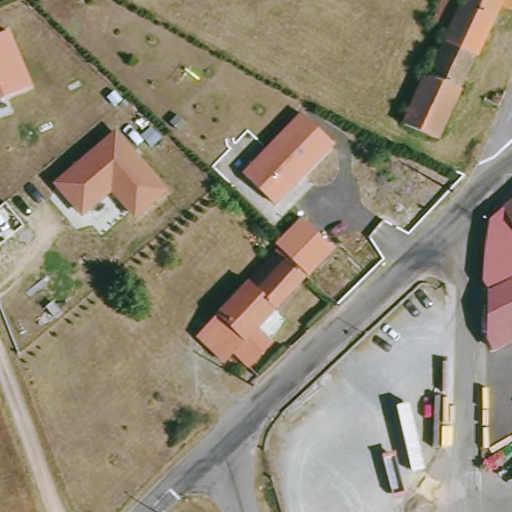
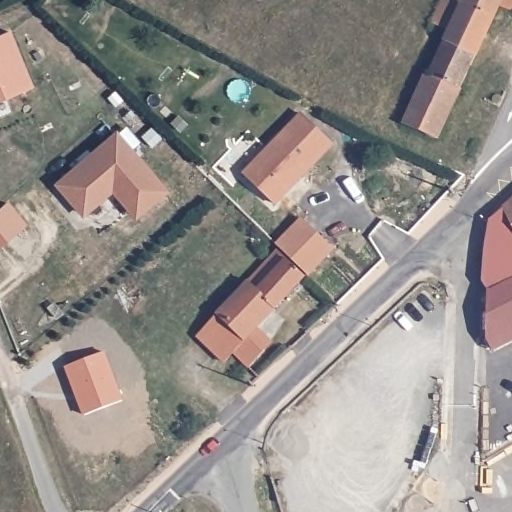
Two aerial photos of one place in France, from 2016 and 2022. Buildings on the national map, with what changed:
unchanged [(495,3),(471,54),(440,37),(441,33),(444,26),(427,19),(435,0),(512,0),(512,7),(495,3)]
unchanged [(10,32),(32,88),(0,102),(0,36),(10,32)]
unchanged [(435,134),(399,118),(423,66),(426,67),(440,37),(471,54),(435,134)]
unchanged [(302,115),(332,144),(271,204),(242,175),(302,115)]
unchanged [(167,191),(138,215),(113,183),(80,212),(55,182),(116,131),(167,191)]
unchanged [(479,219),(512,189),(512,274),(478,294),(479,219)]
new [(6,203),(24,225),(0,244),(0,208),(6,203)]
unchanged [(301,219),(330,249),(304,275),(280,251),(275,246),(301,219)]
unchanged [(247,368),(230,352),(203,325),(276,250),(303,278),(245,337),(262,353),(247,368)]
unchanged [(478,294),(512,274),(512,339),(488,351),(478,294)]
new [(103,353),(122,401),(85,416),(66,368),(103,353)]

